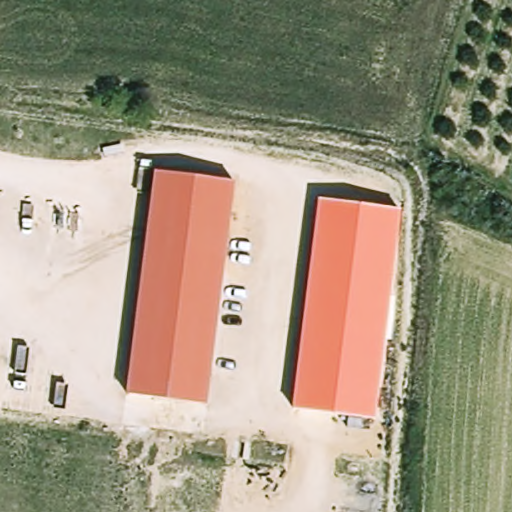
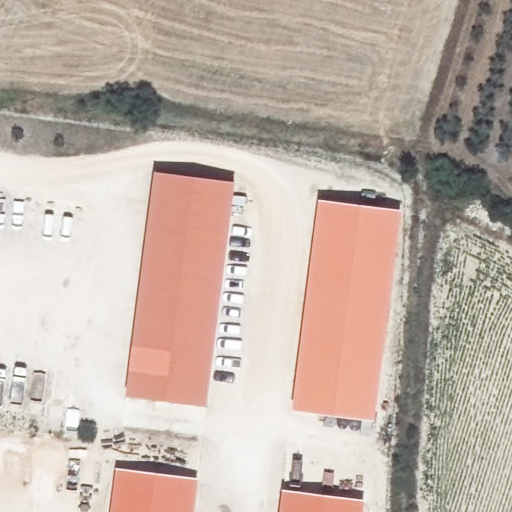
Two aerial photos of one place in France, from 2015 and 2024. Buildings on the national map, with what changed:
unchanged [(230,180),(207,406),(126,399),(149,172),(230,180)]
unchanged [(400,211),(374,420),(293,410),(319,202),(400,211)]
new [(194,512),(111,512),(116,467),(198,478),(194,512)]
new [(365,500),(363,512),(279,512),(282,490),(365,500)]

